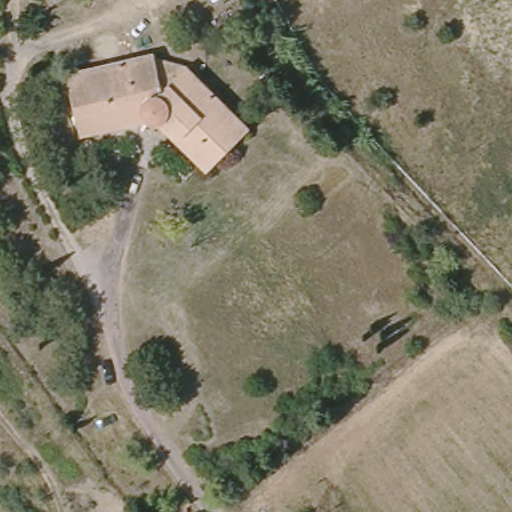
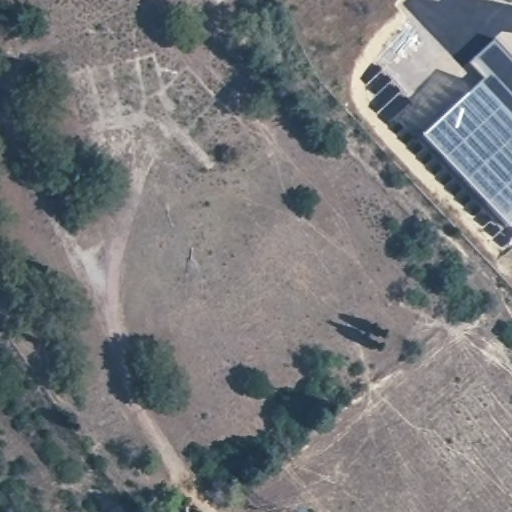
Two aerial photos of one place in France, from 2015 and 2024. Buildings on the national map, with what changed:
new [(423,130),(440,115),(480,78),(467,62),(495,37),(512,56),(512,223),(507,228),(419,134),(423,130)]
demolished [(252,129),(213,167),(182,136),(166,120),(163,121),(160,122),(155,122),(151,121),(147,119),(145,115),(81,130),(68,74),(155,53),(156,57),(185,66),(187,65),(252,129)]

